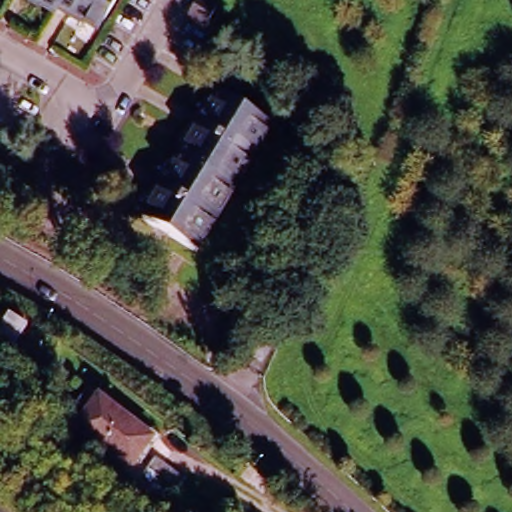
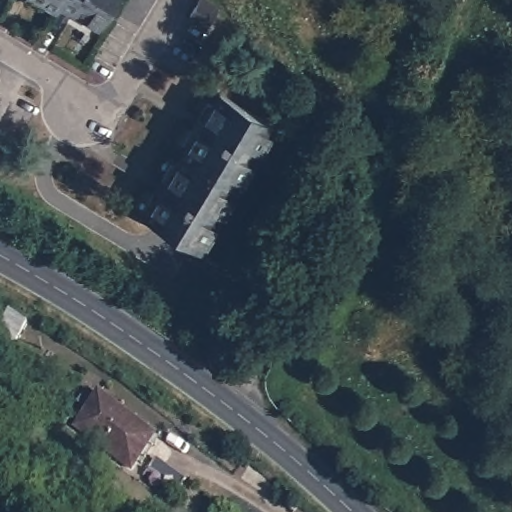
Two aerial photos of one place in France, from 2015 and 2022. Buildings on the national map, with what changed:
unchanged [(53,0),(66,0),(63,6),(53,0)]
unchanged [(115,0),(100,26),(63,6),(66,0),(115,0)]
unchanged [(202,15),(210,0),(223,0),(233,6),(222,26),(202,15)]
unchanged [(271,124),(197,250),(143,218),(217,94),(271,124)]
unchanged [(12,349),(0,341),(0,331),(12,312),(29,323),(12,349)]
unchanged [(136,465),(80,423),(100,392),(157,433),(136,465)]
unchanged [(199,479),(182,502),(149,477),(167,454),(199,479)]

